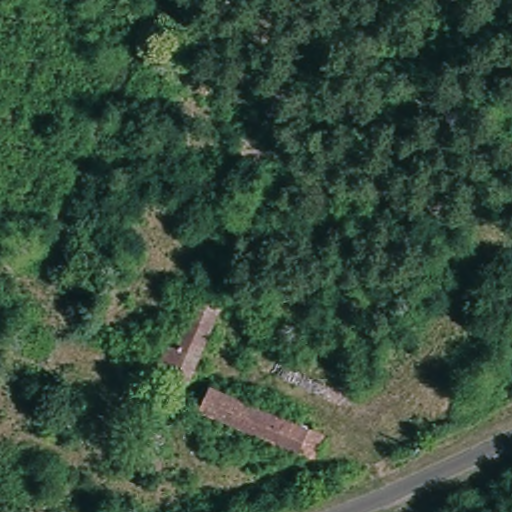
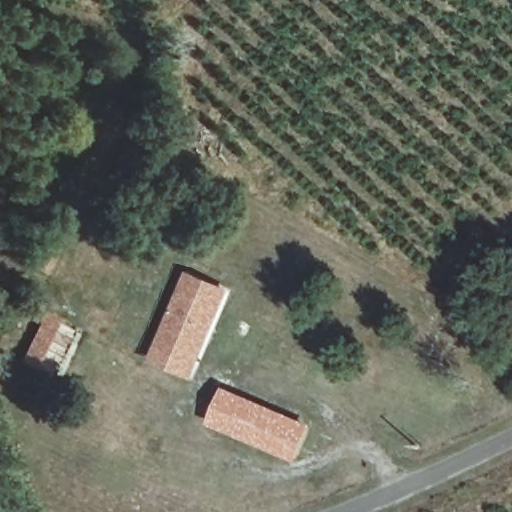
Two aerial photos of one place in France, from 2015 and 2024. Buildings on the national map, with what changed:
new [(230,290),(190,379),(147,361),(187,272),(230,290)]
demolished [(193,376),(162,359),(174,333),(182,337),(201,300),(223,313),(193,376)]
unchanged [(301,454),(212,421),(223,393),(311,426),(301,454)]

